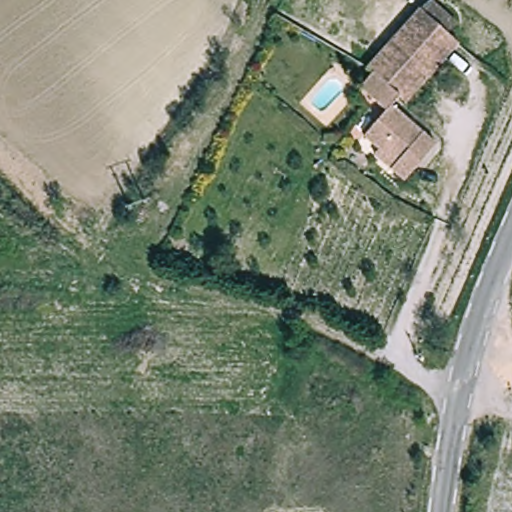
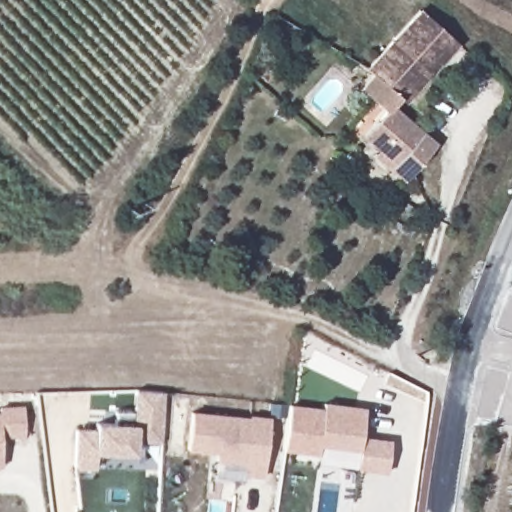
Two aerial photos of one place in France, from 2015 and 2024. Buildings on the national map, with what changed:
unchanged [(381,145),(368,130),(391,108),(368,82),(382,70),(377,65),(432,11),(468,47),(412,102),(406,97),(398,105),(437,147),(402,180),(390,167),(374,151),(381,145)]
new [(135,441),(134,455),(97,452),(95,470),(73,468),(75,428),(94,427),(95,421),(114,422),(115,411),(133,412),(135,389),(164,392),(161,442),(135,441)]
new [(322,407),(323,402),(365,408),(362,436),(392,440),(387,474),(358,469),(360,452),(320,446),(318,455),(283,450),(289,404),(322,407)]
new [(2,438),(2,466),(0,466),(0,406),(25,405),(25,437),(2,438)]
new [(245,481),(213,477),(217,453),(187,450),(191,410),(249,417),(250,415),(271,417),(264,479),(246,476),(245,481)]

